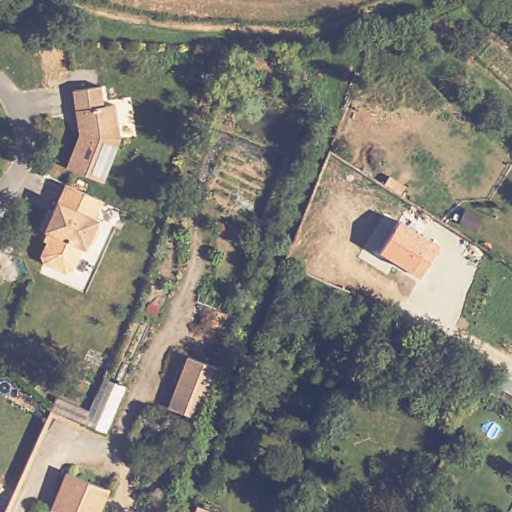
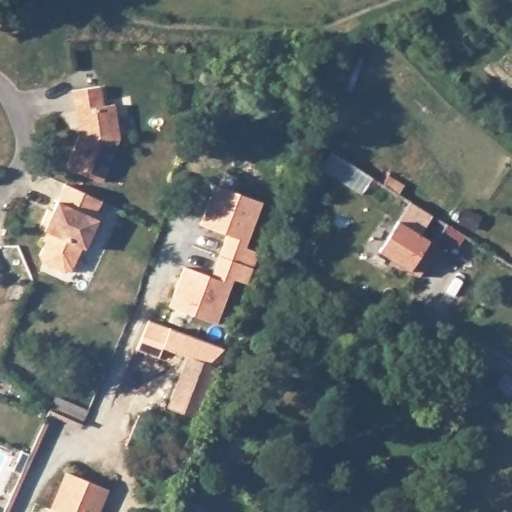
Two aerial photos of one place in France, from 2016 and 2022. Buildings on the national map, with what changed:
unchanged [(104,106),(115,104),(120,140),(104,181),(67,166),(79,131),(72,91),(101,85),(104,106)]
unchanged [(102,198),(103,199),(99,209),(95,216),(96,216),(100,218),(97,222),(100,228),(94,240),(88,242),(88,243),(86,247),(83,245),(73,268),(66,270),(44,260),(41,253),(51,231),(40,226),(49,207),(53,209),(65,182),(102,198)]
new [(185,266),(212,275),(227,235),(200,225),(215,184),(264,202),(248,247),(260,252),(249,285),(233,279),(219,325),(170,308),(185,266)]
unchanged [(409,271),(377,252),(398,220),(428,239),(440,246),(420,279),(409,271)]
unchanged [(220,367),(201,424),(166,412),(185,357),(220,367)]
unchanged [(55,414),(60,403),(89,417),(90,418),(85,431),(56,417),(54,416),(55,414)]
unchanged [(51,512),(66,478),(109,496),(102,512),(51,512)]
unchanged [(211,512),(197,512),(199,507),(211,512)]

